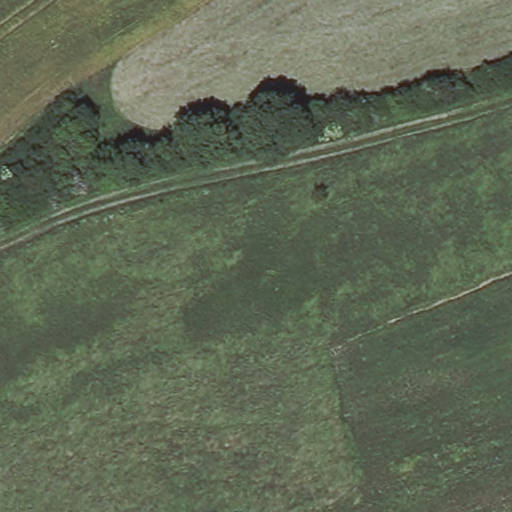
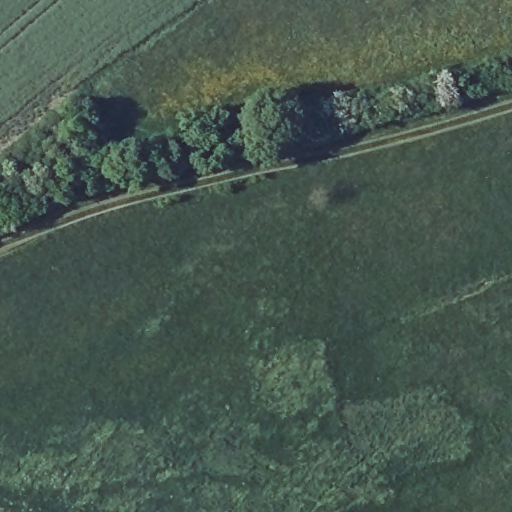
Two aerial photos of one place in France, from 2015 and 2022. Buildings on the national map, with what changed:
unchanged [(80,131),(134,116),(146,146),(91,161),(80,131)]

